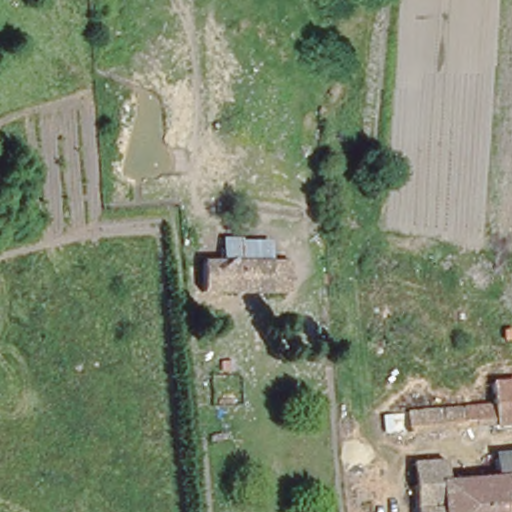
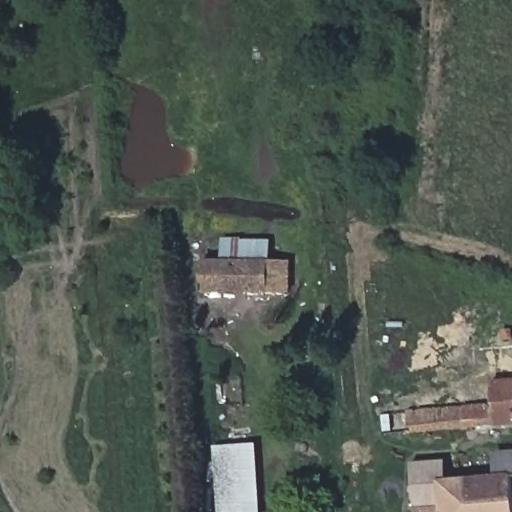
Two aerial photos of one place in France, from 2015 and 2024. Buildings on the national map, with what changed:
unchanged [(204,295),(203,262),(222,262),(222,245),(272,246),(272,265),(284,265),(282,298),(204,295)]
unchanged [(408,418),(494,410),(492,385),(512,383),(512,425),(410,436),(408,418)]
new [(256,445),(262,512),(219,512),(214,448),(256,445)]
unchanged [(510,454),(512,454),(512,475),(510,475),(510,454)]
unchanged [(512,512),(415,512),(411,463),(448,461),(449,478),(510,475),(512,505),(512,512)]

